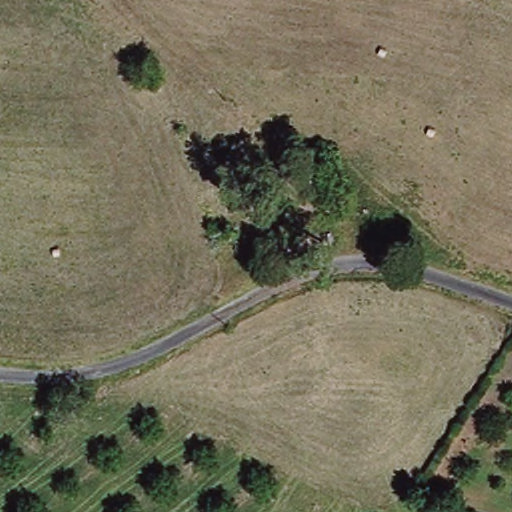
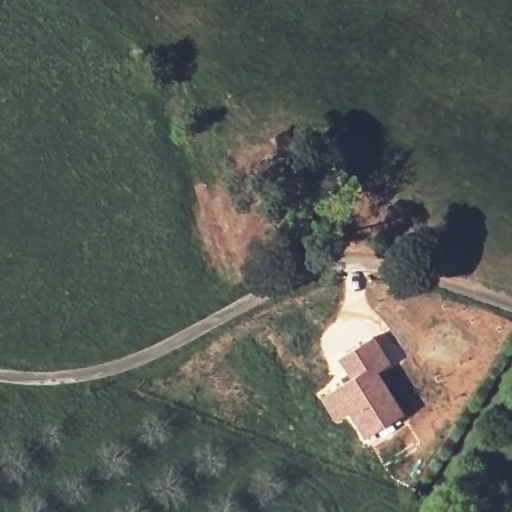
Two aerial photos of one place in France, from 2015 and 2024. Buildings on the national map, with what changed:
new [(346,377),(334,359),(373,337),(390,364),(376,372),(403,414),(362,440),(345,416),(334,423),(316,396),(346,377)]

